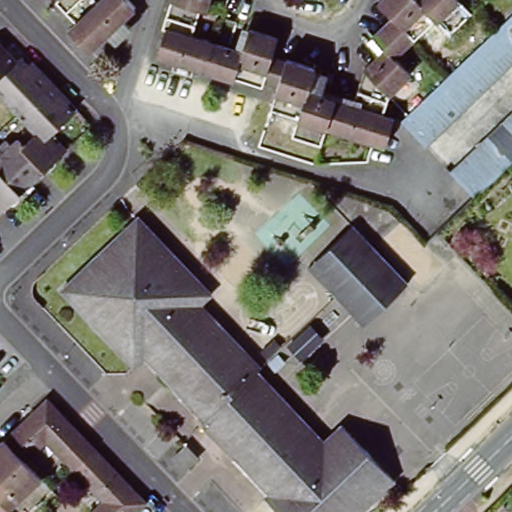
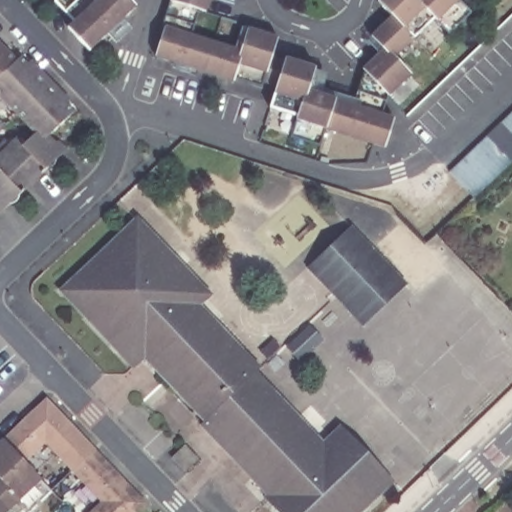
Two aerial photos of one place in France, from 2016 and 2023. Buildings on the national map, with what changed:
unchanged [(77,28),(74,24),(55,6),(62,1),(61,0),(86,0),(94,8),(102,0),(125,0),(135,9),(118,25),(103,39),(97,44),(79,25),(77,28)]
unchanged [(197,10),(189,36),(224,48),(237,53),(245,29),(275,39),(270,56),(260,88),(233,79),(232,83),(199,73),(175,65),(170,63),(178,35),(165,31),(160,29),(169,0),(207,0),(203,12),(197,10)]
unchanged [(374,62),(380,55),(367,43),(387,23),(372,8),(379,0),(408,0),(411,3),(414,0),(449,0),(466,16),(445,38),(430,23),(389,64),(405,80),(387,98),(385,100),(360,76),(374,62)]
unchanged [(0,78),(0,54),(12,66),(0,78)]
unchanged [(375,143),(328,129),(322,145),(294,136),(300,116),(272,108),(279,87),(288,59),(316,68),(309,91),(355,105),(384,115),(395,119),(385,147),(375,143)]
unchanged [(10,152),(15,147),(20,154),(34,141),(0,106),(0,78),(12,66),(17,62),(24,69),(27,66),(36,75),(59,99),(67,108),(64,110),(72,119),(48,142),(55,150),(60,145),(67,153),(62,158),(64,159),(45,177),(15,206),(0,221),(0,150),(5,145),(10,152)]
unchanged [(470,204),(445,179),(512,114),(512,164),(470,204)]
unchanged [(172,400),(177,395),(148,364),(132,379),(55,298),(135,221),(214,302),(202,314),(257,374),(254,377),(280,405),(225,457),(201,431),(214,419),(207,412),(194,424),(172,400)]
unchanged [(337,299),(309,269),(352,228),(380,258),(337,299)]
unchanged [(362,327),(337,299),(380,258),(407,285),(362,327)]
unchanged [(68,470),(40,442),(20,461),(0,440),(42,400),(90,450),(68,470)]
unchanged [(280,405),(320,447),(337,430),(392,489),(367,512),(274,512),(262,499),(264,497),(225,457),(280,405)]
unchanged [(0,440),(20,461),(37,478),(5,509),(0,504),(0,440)]
unchanged [(187,446),(199,459),(185,473),(172,459),(182,449),(187,446)]
unchanged [(90,450),(142,504),(133,512),(85,512),(97,500),(68,470),(90,450)]
unchanged [(1,512),(0,512),(0,504),(5,509),(1,512)]

